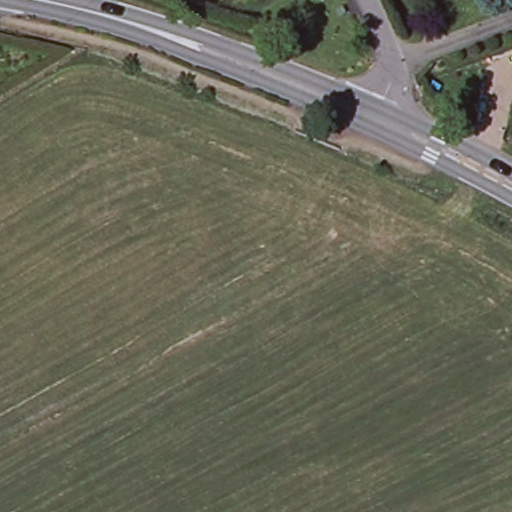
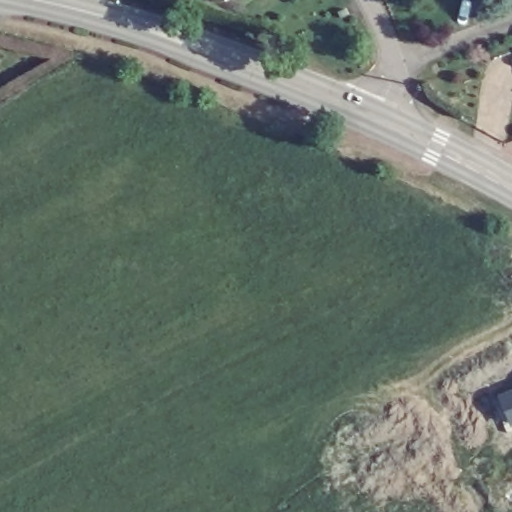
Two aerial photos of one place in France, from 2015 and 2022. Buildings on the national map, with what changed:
demolished [(212,0),(213,0),(213,1),(212,0)]
new [(509,427),(498,397),(512,391),(512,426),(509,427)]

